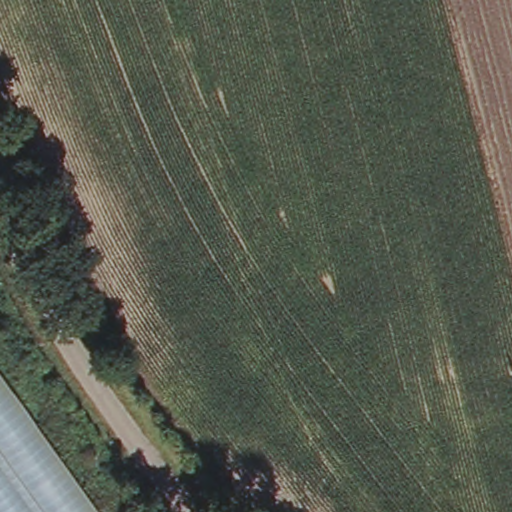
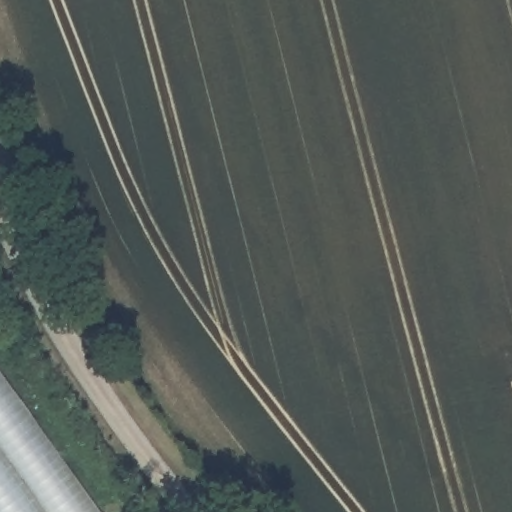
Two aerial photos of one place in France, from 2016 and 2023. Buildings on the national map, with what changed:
unchanged [(0,512),(0,374),(98,512),(0,512)]

